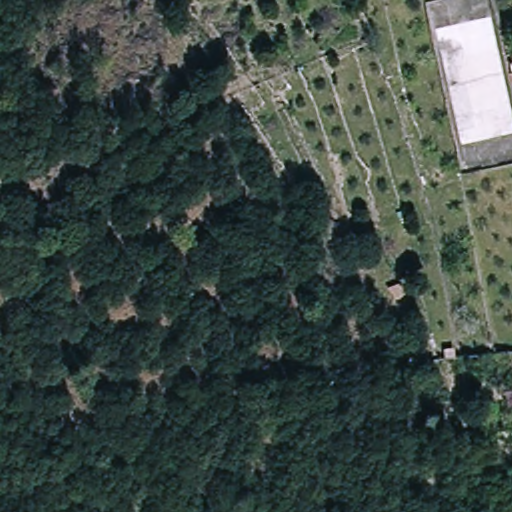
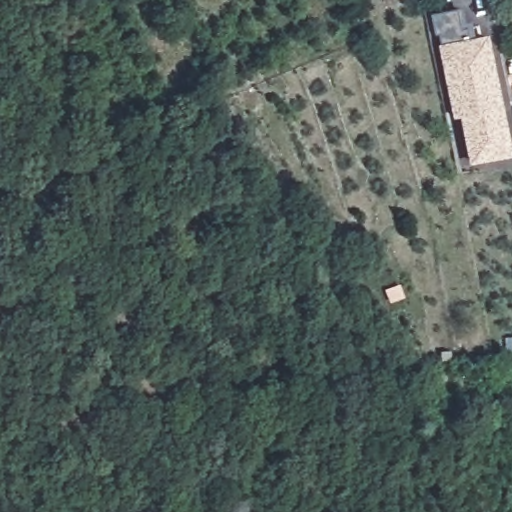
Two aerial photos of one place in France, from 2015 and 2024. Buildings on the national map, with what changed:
new [(489,34),(504,109),(512,147),(512,156),(470,164),(461,117),(454,118),(438,44),(440,44),(439,34),(435,35),(430,14),(462,7),(465,22),(472,21),(475,37),(489,34)]
new [(511,87),(508,75),(512,74),(512,87),(511,87)]

